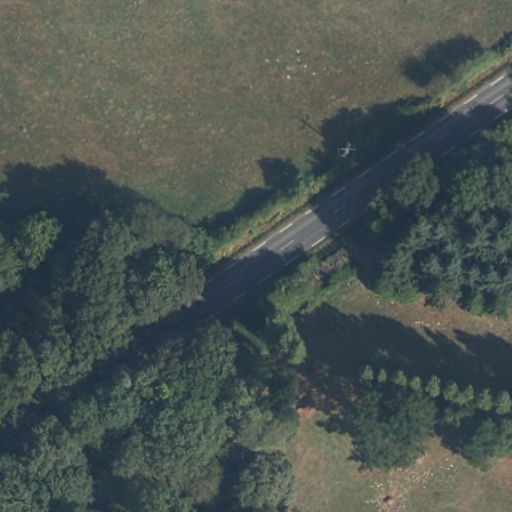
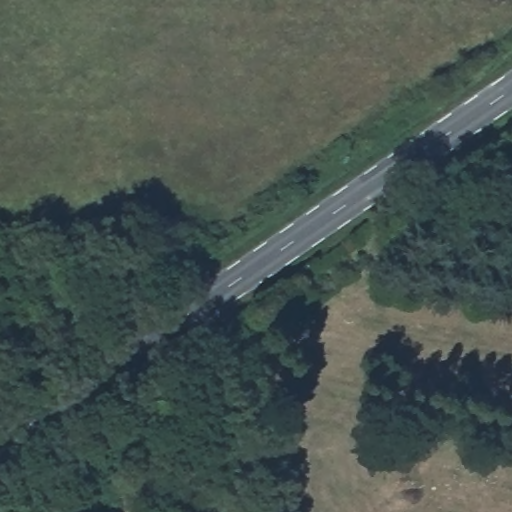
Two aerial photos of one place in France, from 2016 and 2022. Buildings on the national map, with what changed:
[]

